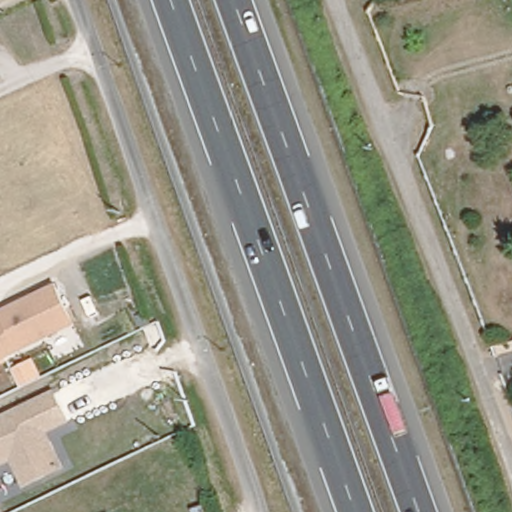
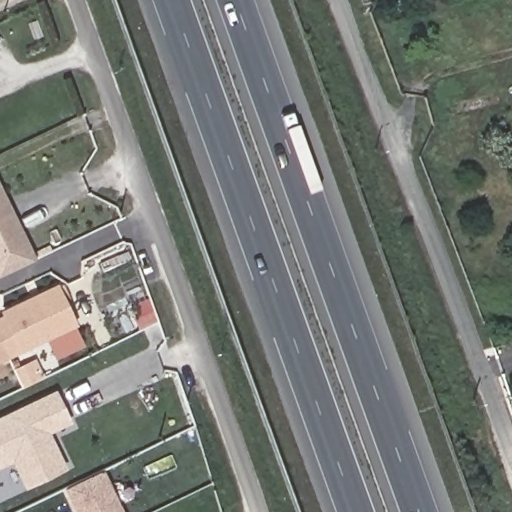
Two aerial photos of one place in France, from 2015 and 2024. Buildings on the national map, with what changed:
new [(0,275),(0,186),(35,258),(0,275)]
unchanged [(0,311),(58,284),(80,326),(0,363),(0,311)]
unchanged [(15,463),(0,469),(0,416),(57,390),(74,421),(51,432),(68,467),(26,489),(15,463)]
new [(63,489),(104,469),(125,512),(74,512),(63,489)]

